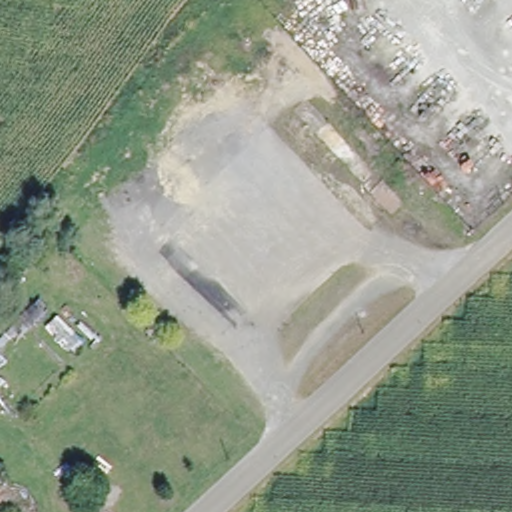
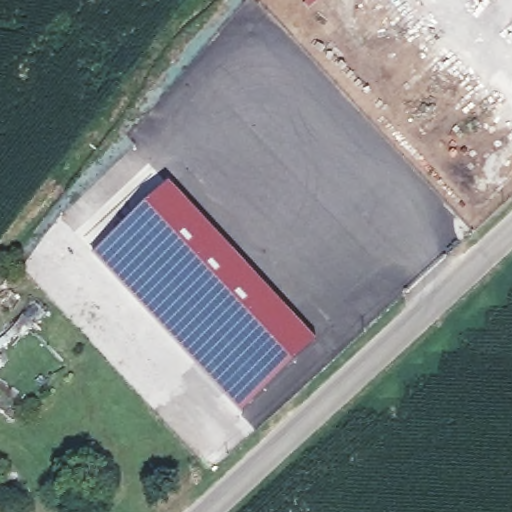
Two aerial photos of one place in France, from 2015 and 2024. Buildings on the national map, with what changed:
new [(167,187),(315,347),(240,416),(92,256),(167,187)]

